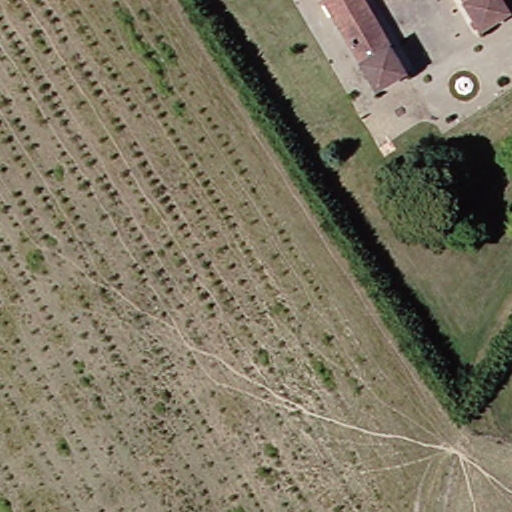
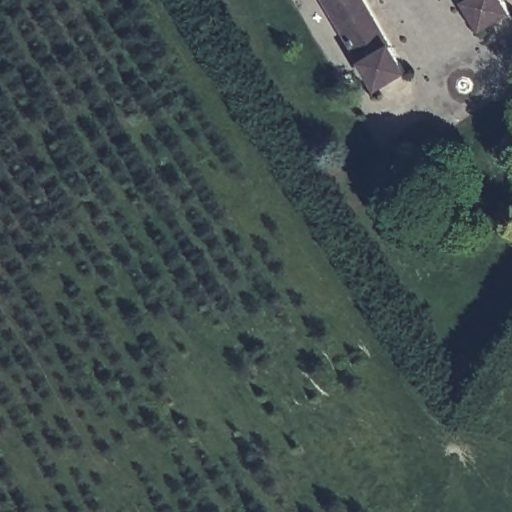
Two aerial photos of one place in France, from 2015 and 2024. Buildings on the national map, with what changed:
unchanged [(401,72),(368,91),(349,62),(315,0),(359,0),(386,44),(401,72)]
unchanged [(473,29),(456,0),(499,0),(506,13),(473,29)]

